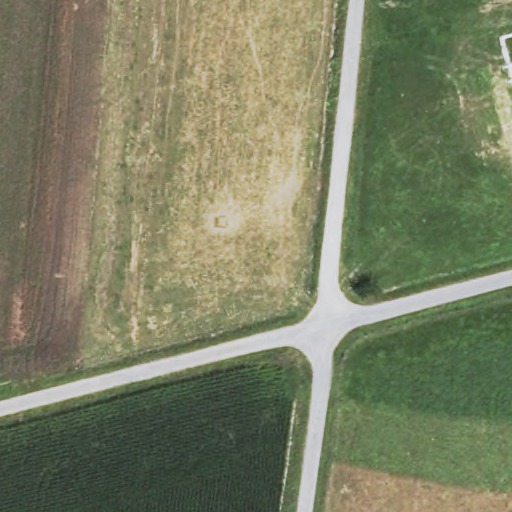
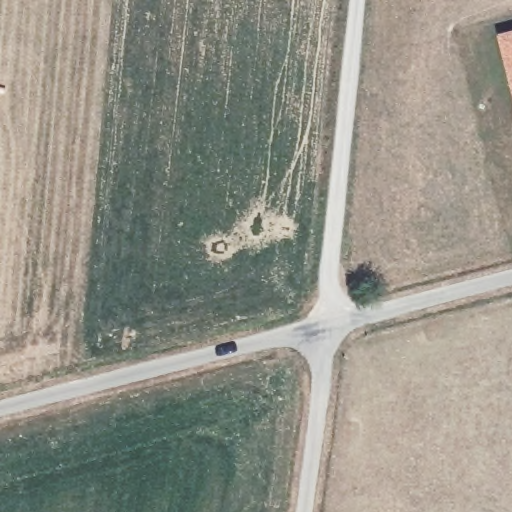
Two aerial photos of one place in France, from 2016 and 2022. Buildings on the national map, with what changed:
new [(512,31),(512,87),(498,35),(512,31)]

